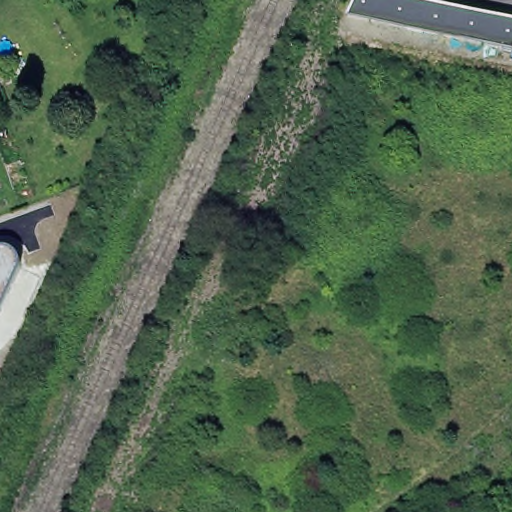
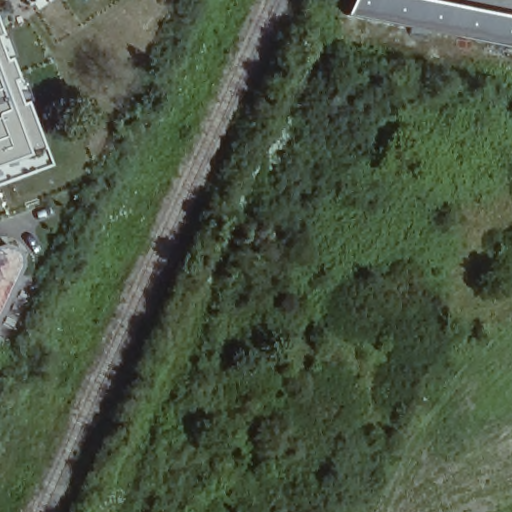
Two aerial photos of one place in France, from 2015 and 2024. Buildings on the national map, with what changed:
new [(37,3),(34,0),(41,0),(37,3)]
unchanged [(512,18),(512,51),(347,17),(355,0),(421,0),(512,18)]
new [(51,173),(0,191),(0,33),(51,173)]
unchanged [(0,247),(7,247),(15,251),(19,256),(20,263),(18,271),(0,314),(0,247)]

